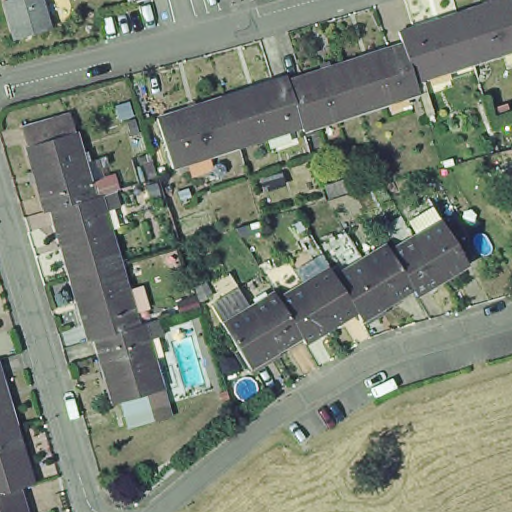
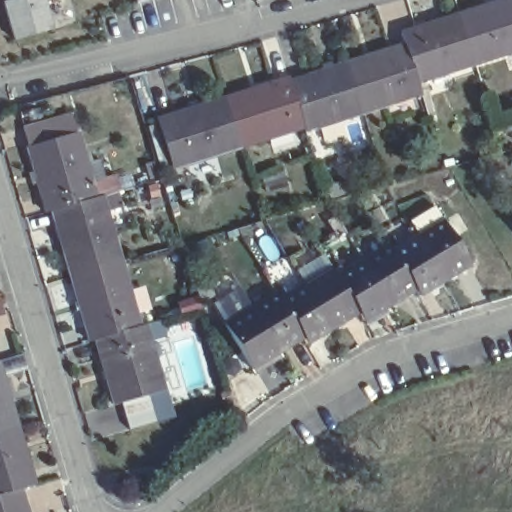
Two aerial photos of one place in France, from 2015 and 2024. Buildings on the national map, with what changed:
unchanged [(51,24),(14,35),(4,0),(44,0),(51,24)]
unchanged [(133,4),(132,0),(147,0),(133,4)]
unchanged [(501,55),(471,64),(457,18),(456,12),(494,0),(512,0),(512,46),(500,49),(501,55)]
unchanged [(449,71),(447,66),(430,72),(431,76),(414,82),(402,44),(398,31),(430,21),(433,26),(457,18),(471,64),(449,71)]
unchanged [(366,55),(402,44),(414,82),(418,94),(400,100),(398,95),(381,101),(383,105),(361,112),(346,66),(368,60),(366,55)]
unchanged [(321,70),(319,65),(330,62),(333,70),(346,66),(361,112),(333,121),(331,115),(314,121),(316,126),(302,130),(302,127),(286,80),(321,70)]
unchanged [(302,127),(284,133),(283,129),(265,134),(266,139),(238,147),(222,96),(286,77),(286,80),(302,127)]
unchanged [(238,147),(205,158),(204,153),(186,159),(187,164),(170,170),(155,118),(222,96),(238,147)]
unchanged [(121,190),(126,206),(108,211),(104,212),(109,232),(113,231),(122,261),(72,275),(53,210),(48,212),(29,145),(31,145),(26,126),(71,114),(76,132),(79,131),(88,161),(101,157),(106,177),(116,175),(121,190)]
unchanged [(418,239),(445,222),(471,267),(445,283),(419,241),(418,239)]
unchanged [(419,241),(445,283),(420,297),(416,291),(395,255),(419,241)]
unchanged [(392,250),(395,255),(416,291),(392,305),(368,265),(392,250)]
unchanged [(365,321),(359,312),(338,276),(365,260),(368,265),(392,305),(365,321)]
unchanged [(131,290),(126,291),(132,310),(136,309),(142,326),(95,340),(91,341),(72,275),(122,261),(131,290)]
unchanged [(305,283),(332,267),(338,276),(359,312),(332,329),(306,286),(305,283)]
unchanged [(306,286),(332,329),(309,343),(304,336),(282,300),(306,286)]
unchanged [(279,351),(251,367),(224,322),(213,305),(240,288),(251,306),(253,309),(279,351)]
unchanged [(278,293),(282,300),(304,336),(279,351),(253,309),(278,293)]
unchanged [(127,416),(123,403),(114,405),(95,340),(142,326),(148,325),(162,320),(166,335),(152,340),(146,342),(153,363),(158,361),(167,390),(149,395),(153,410),(157,422),(131,429),(127,416)]
unchanged [(19,426),(14,428),(0,432),(0,365),(19,426)]
unchanged [(14,428),(23,456),(27,455),(36,485),(21,490),(27,512),(0,512),(0,432),(14,428)]

